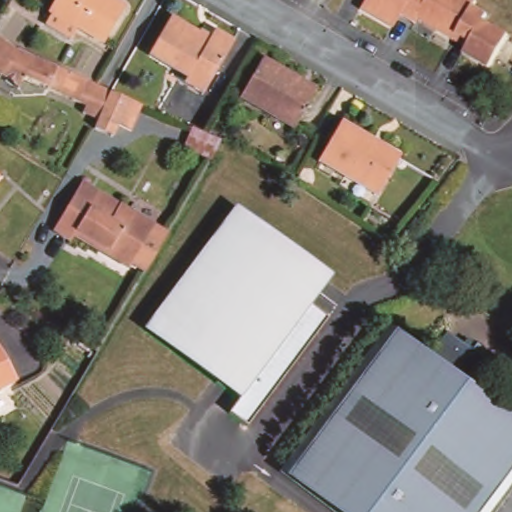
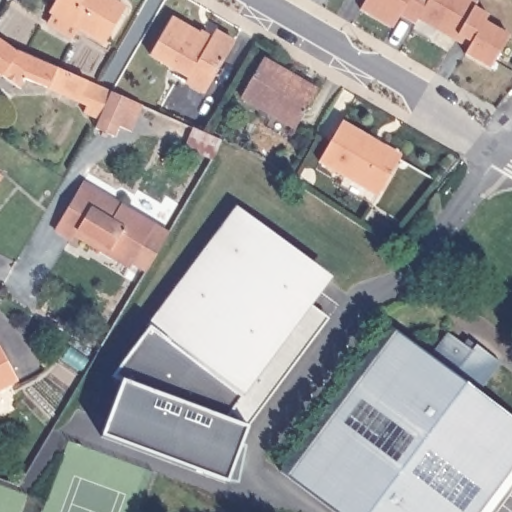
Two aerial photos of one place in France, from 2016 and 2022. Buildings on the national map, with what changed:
unchanged [(58,0),(109,0),(125,10),(105,44),(51,11),(58,0)]
unchanged [(463,56),(468,49),(454,40),(419,17),(414,23),(398,14),(392,26),(361,7),(366,0),(469,0),(476,4),(473,10),(485,19),(481,25),(509,42),(508,45),(487,71),(463,56)]
unchanged [(171,14),(211,40),(217,29),(234,41),(202,93),(185,81),(188,76),(148,51),(171,14)]
unchanged [(133,121),(118,116),(113,127),(94,119),(93,121),(79,114),(83,104),(24,77),(20,85),(0,75),(0,50),(10,55),(12,51),(91,87),(105,93),(123,103),(137,108),(133,121)]
unchanged [(262,54),(315,88),(292,125),(238,91),(262,54)]
unchanged [(339,125),(369,145),(375,135),(402,152),(369,204),(313,167),(339,125)]
unchanged [(184,157),(192,135),(203,141),(221,150),(212,170),(184,157)]
unchanged [(90,245),(62,228),(72,210),(54,200),(69,174),(156,226),(134,261),(120,253),(116,260),(90,245)]
unchanged [(240,212),(324,279),(306,302),(315,309),(306,319),(322,332),(248,426),(229,411),(241,396),(152,326),(240,212)]
unchanged [(428,356),(445,332),(468,350),(473,345),(497,364),(474,393),(512,422),(512,472),(482,512),(332,512),(275,468),(386,324),(428,356)]
new [(240,443),(235,484),(224,480),(101,434),(120,382),(111,378),(152,326),(241,396),(229,411),(248,426),(240,443)]
unchanged [(0,347),(18,380),(0,390),(0,348),(0,347)]

